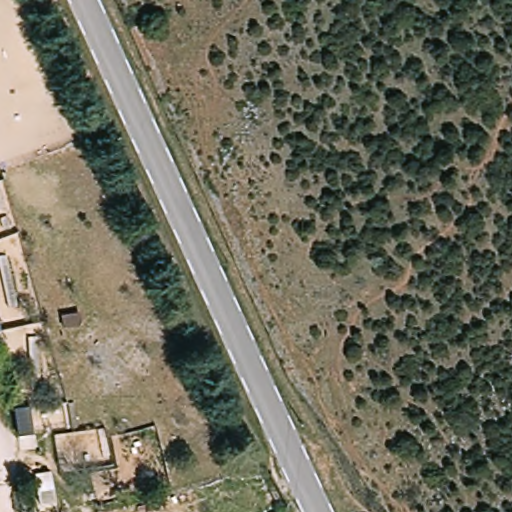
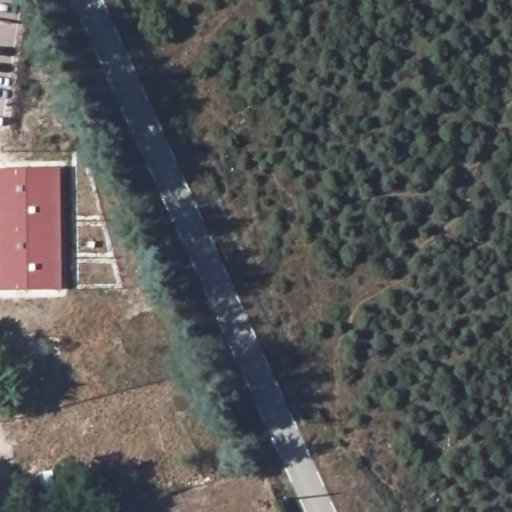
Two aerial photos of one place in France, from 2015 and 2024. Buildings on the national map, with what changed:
new [(63,291),(0,291),(0,169),(62,168),(63,291)]

